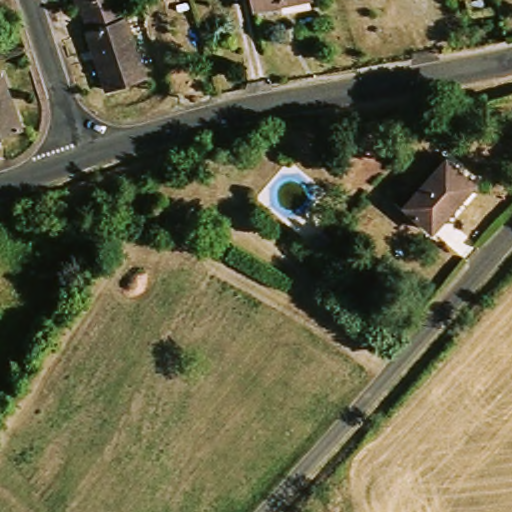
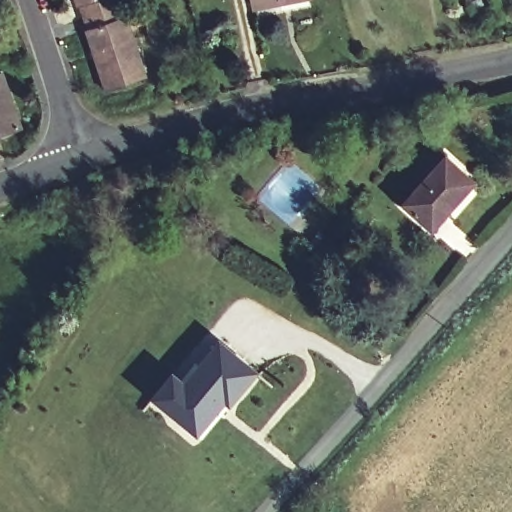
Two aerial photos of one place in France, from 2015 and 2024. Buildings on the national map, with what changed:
unchanged [(145,87),(105,97),(77,0),(121,0),(145,87)]
unchanged [(256,5),(255,0),(290,0),(256,5)]
unchanged [(10,84),(22,115),(0,124),(0,88),(10,84)]
unchanged [(435,234),(405,209),(447,160),(475,185),(435,234)]
demolished [(322,220),(331,229),(318,245),(309,235),(322,220)]
new [(320,231),(330,240),(317,255),(307,246),(320,231)]
new [(178,389),(214,346),(251,378),(223,410),(217,405),(190,438),(158,412),(147,402),(167,378),(178,389)]

